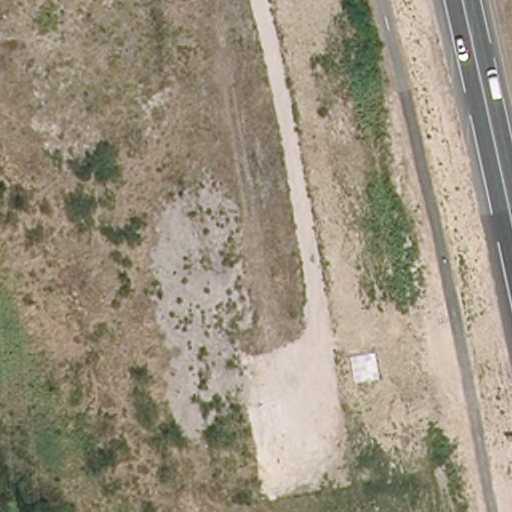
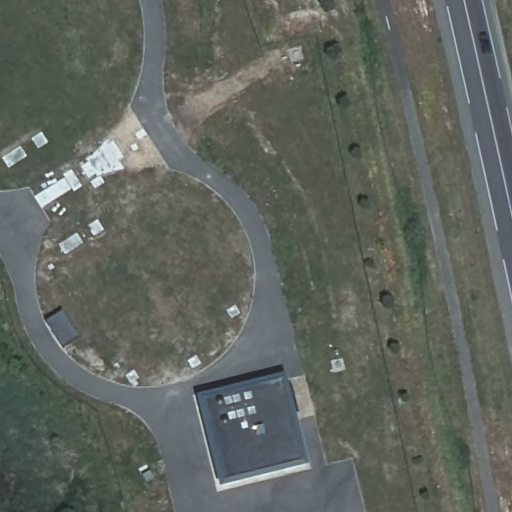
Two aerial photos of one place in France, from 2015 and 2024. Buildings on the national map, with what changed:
new [(286,375),(308,467),(219,489),(196,397),(286,375)]

